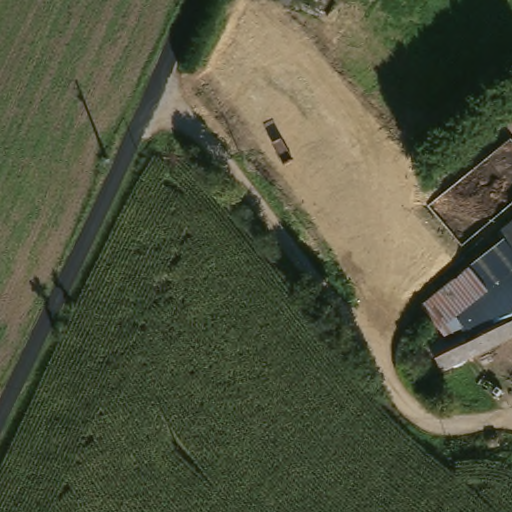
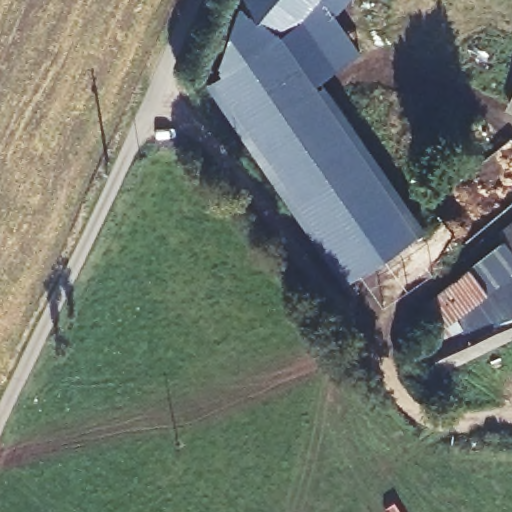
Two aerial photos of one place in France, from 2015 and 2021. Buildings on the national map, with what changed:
unchanged [(283,18),(271,11),(274,5),(277,0),(292,0),(284,14),(283,18)]
demolished [(398,118),(383,140),(256,52),(272,30),(398,118)]
new [(214,80),(281,32),(418,228),(351,277),(214,80)]
unchanged [(512,89),(512,116),(501,111),(512,89)]
unchanged [(501,311),(445,338),(439,328),(421,306),(469,266),(505,236),(500,229),(512,219),(512,319),(506,308),(501,311)]
unchanged [(506,308),(512,319),(512,339),(439,375),(426,348),(501,311),(506,308)]

